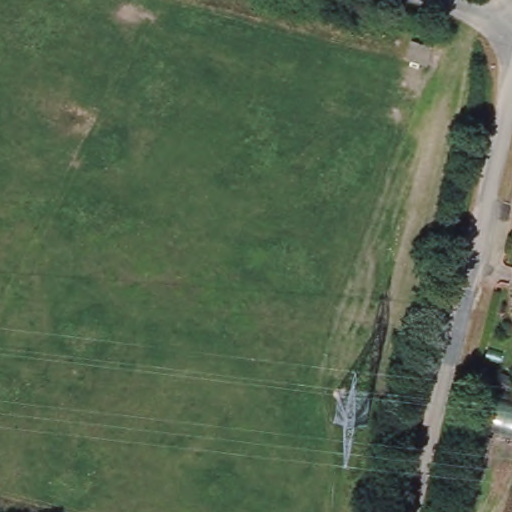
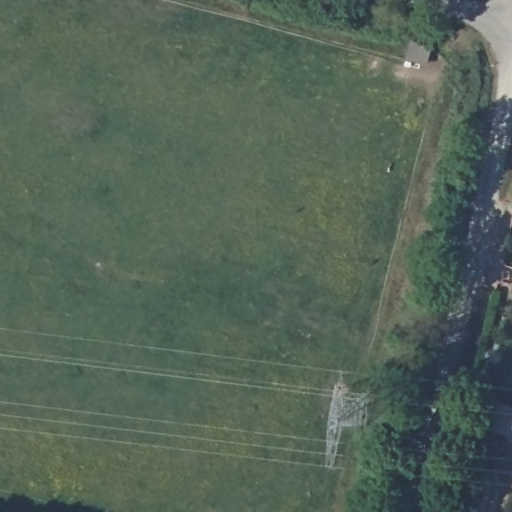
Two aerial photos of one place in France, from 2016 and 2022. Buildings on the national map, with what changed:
[]

